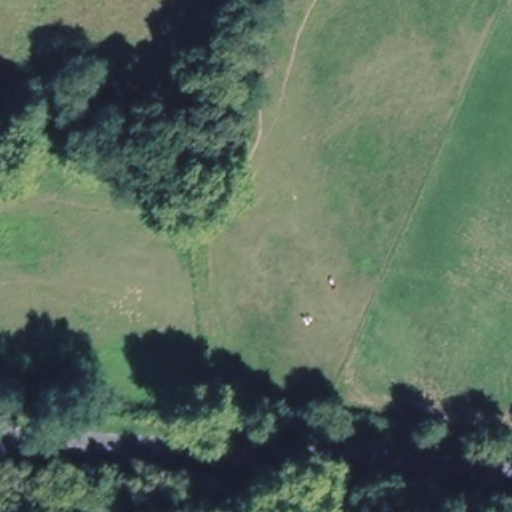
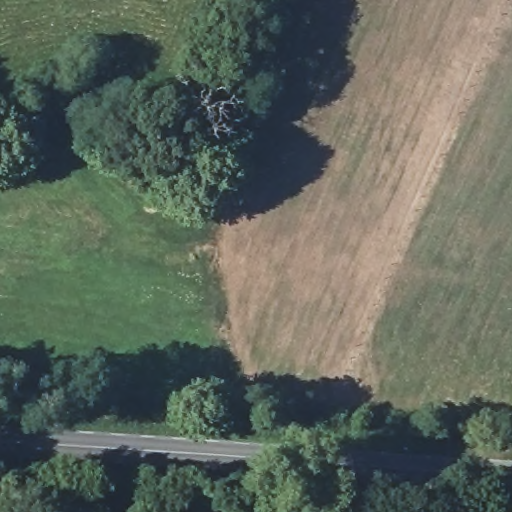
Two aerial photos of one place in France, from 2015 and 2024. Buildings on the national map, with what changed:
[]

